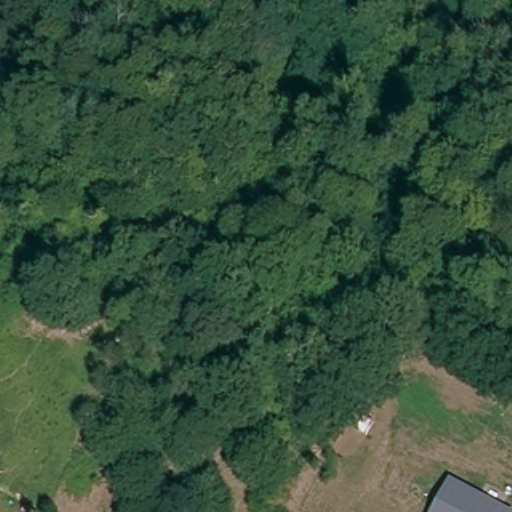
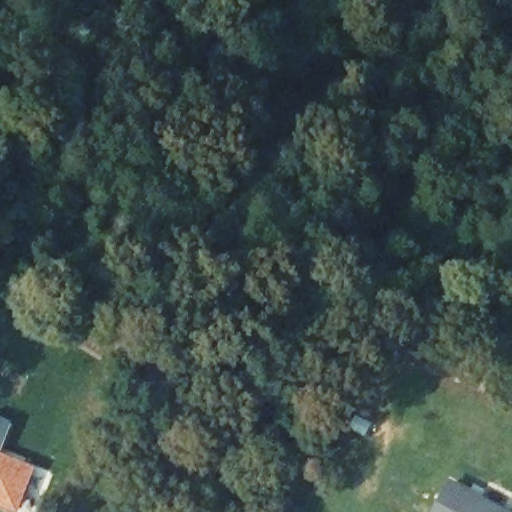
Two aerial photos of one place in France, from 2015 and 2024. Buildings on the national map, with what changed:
new [(5,452),(39,467),(21,512),(7,512),(1,510),(0,510),(0,415),(16,422),(5,452)]
unchanged [(509,512),(432,512),(449,479),(509,512)]

